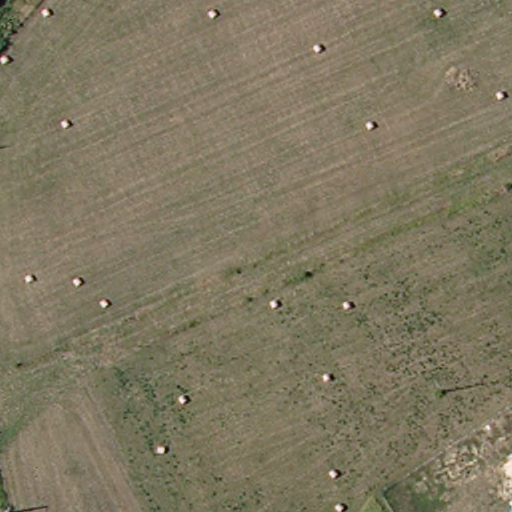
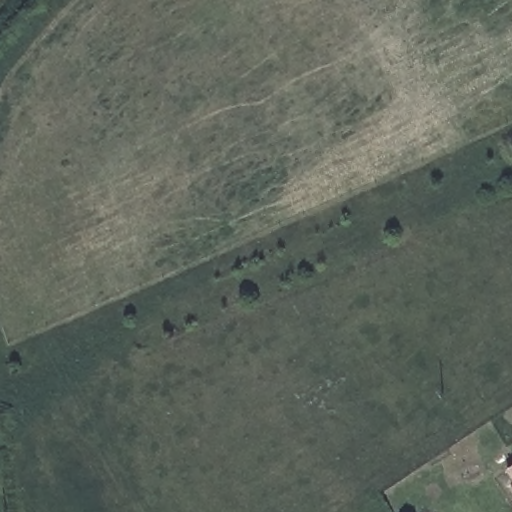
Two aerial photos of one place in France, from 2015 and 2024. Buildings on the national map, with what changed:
unchanged [(512,465),(512,479),(505,469),(512,465)]

